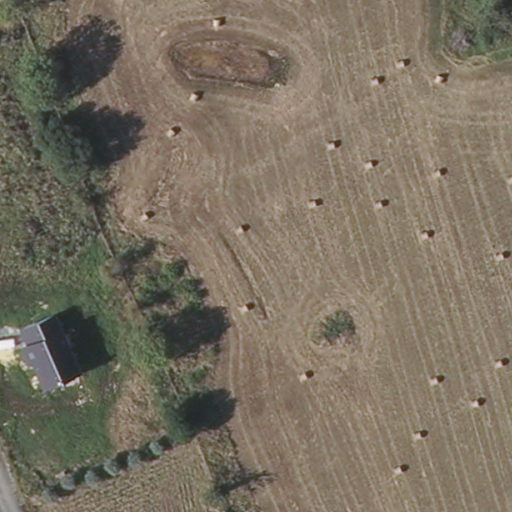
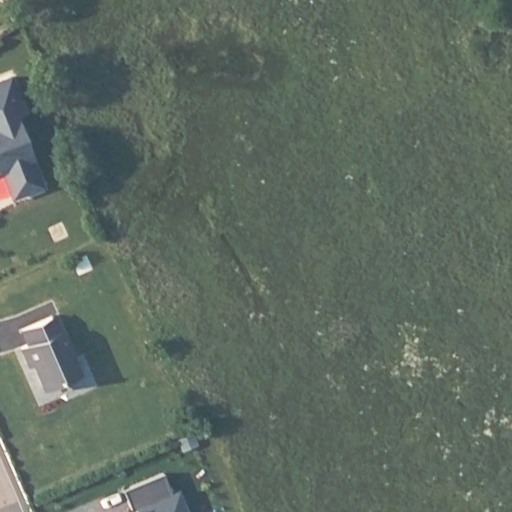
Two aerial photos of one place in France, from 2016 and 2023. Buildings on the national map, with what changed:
new [(58,182),(11,196),(0,166),(0,78),(17,70),(58,182)]
unchanged [(44,387),(24,343),(28,343),(21,328),(55,313),(82,369),(44,387)]
new [(122,489),(164,472),(172,492),(179,489),(189,512),(133,512),(122,489)]

